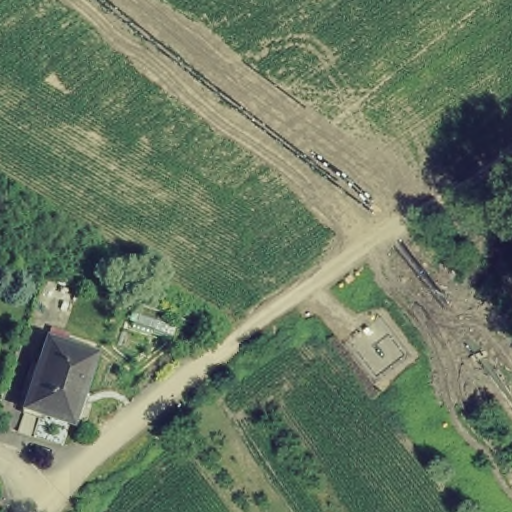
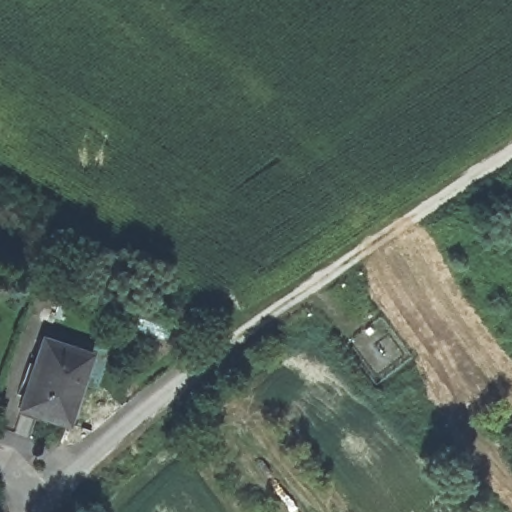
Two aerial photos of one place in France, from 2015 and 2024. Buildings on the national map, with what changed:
unchanged [(44,335),(93,349),(70,419),(23,404),(44,335)]

